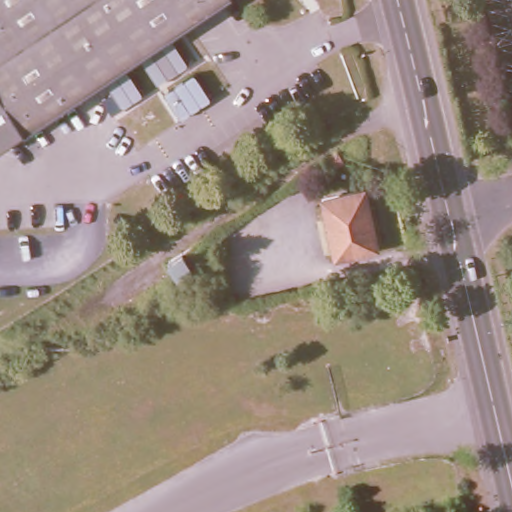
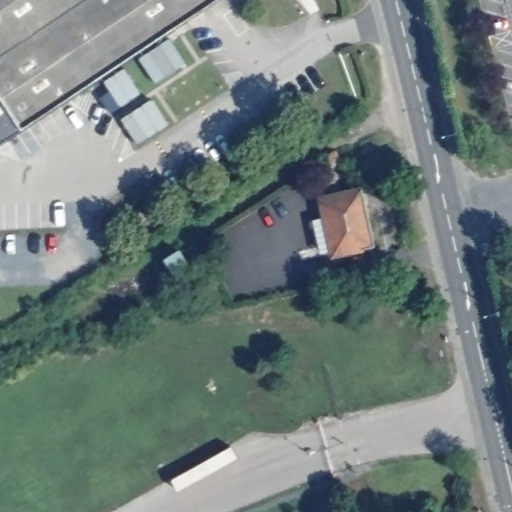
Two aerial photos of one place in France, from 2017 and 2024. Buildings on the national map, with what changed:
unchanged [(0,91),(0,0),(215,0),(24,127),(0,91)]
unchanged [(24,127),(0,143),(0,91),(24,127)]
unchanged [(322,163),(340,151),(342,154),(347,164),(330,174),(322,163)]
unchanged [(375,237),(335,247),(324,204),(365,194),(375,237)]
unchanged [(181,244),(191,261),(175,270),(166,253),(181,244)]

